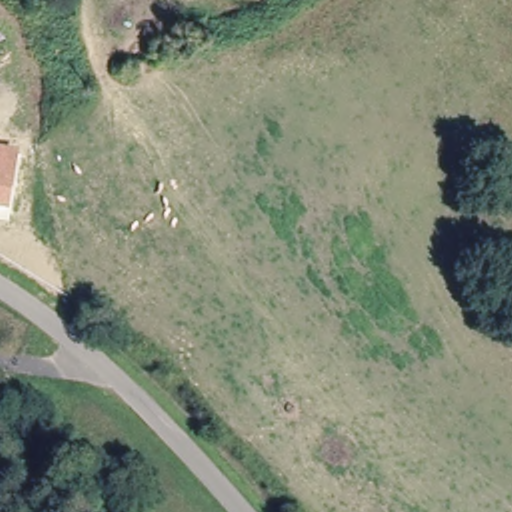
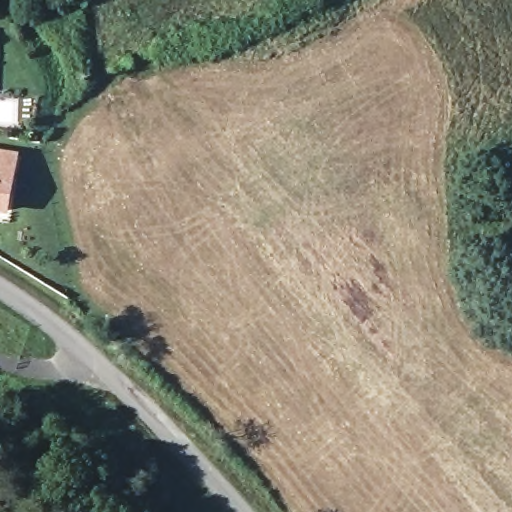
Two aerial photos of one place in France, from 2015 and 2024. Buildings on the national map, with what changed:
unchanged [(19,154),(10,221),(0,219),(0,150),(19,154)]

